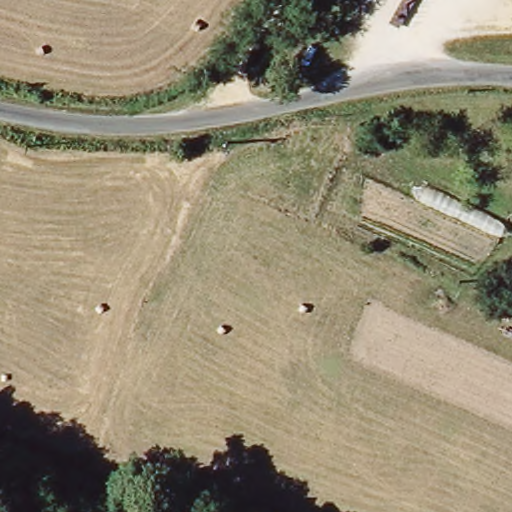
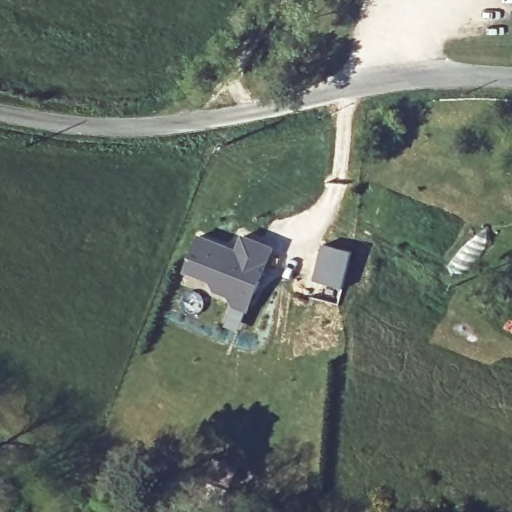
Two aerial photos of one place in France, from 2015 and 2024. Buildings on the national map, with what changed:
new [(230,307),(228,298),(213,291),(210,282),(183,271),(198,236),(225,248),(236,253),(242,236),(272,250),(251,300),(246,312),(230,307)]
new [(323,246),(352,254),(341,290),(313,282),(323,246)]
new [(210,469),(236,478),(229,497),(203,487),(210,469)]

